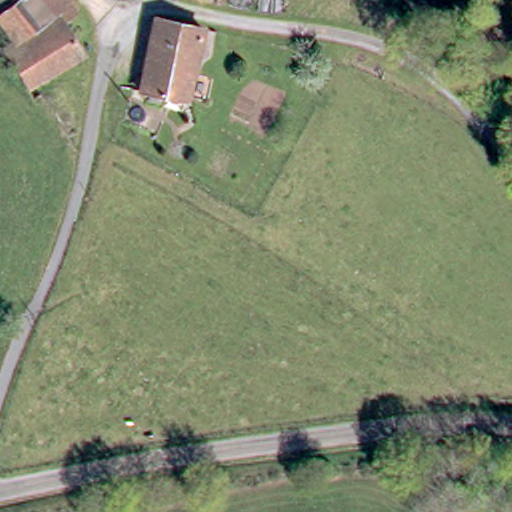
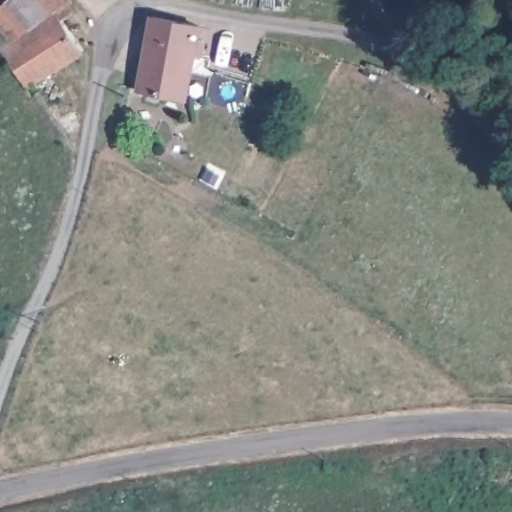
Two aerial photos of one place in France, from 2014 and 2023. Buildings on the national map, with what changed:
unchanged [(50,2),(82,50),(25,90),(0,51),(0,48),(10,41),(0,22),(0,0),(54,0),(50,2)]
unchanged [(187,92),(167,88),(162,98),(148,96),(149,93),(147,87),(143,83),(137,82),(152,9),(200,20),(187,92)]

